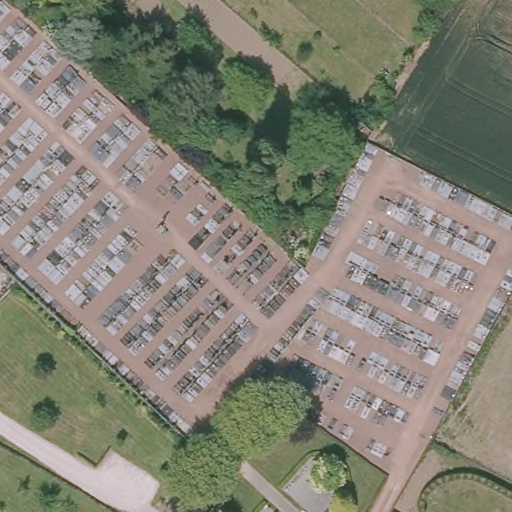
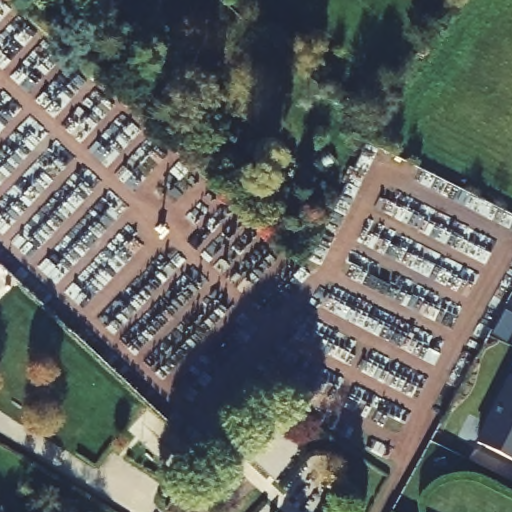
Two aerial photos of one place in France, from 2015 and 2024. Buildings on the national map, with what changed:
new [(512,376),(512,459),(478,441),(512,375),(512,376)]

